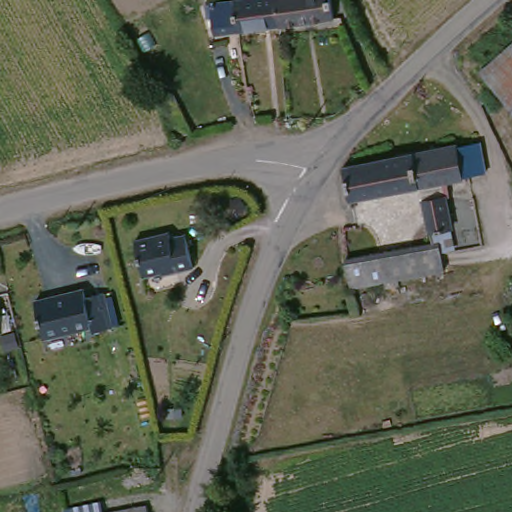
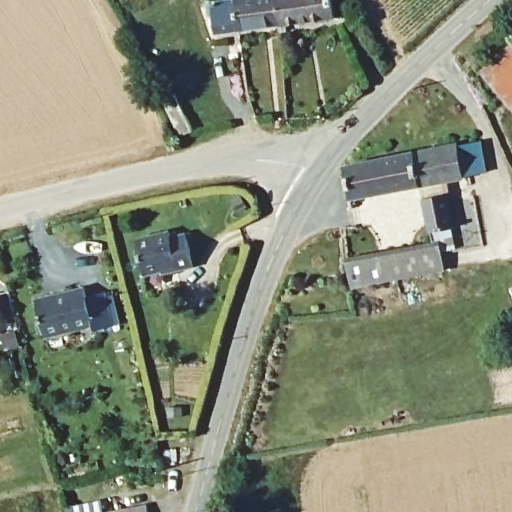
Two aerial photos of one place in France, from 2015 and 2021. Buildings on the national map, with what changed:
unchanged [(236,30),(215,32),(211,7),(212,0),(217,0),(278,0),(282,25),(236,30)]
unchanged [(282,25),(278,0),(332,0),(335,19),(282,25)]
unchanged [(487,86),(512,62),(512,114),(487,86)]
unchanged [(345,172),(456,149),(473,147),(476,170),(461,172),(461,180),(443,185),(450,231),(431,235),(420,189),(351,205),(345,172)]
unchanged [(183,240),(193,278),(173,282),(171,277),(139,284),(129,247),(160,240),(162,245),(183,240)]
unchanged [(353,290),(348,262),(443,249),(448,275),(353,290)]
unchanged [(30,305),(78,290),(80,298),(97,293),(107,327),(89,332),(88,327),(40,341),(30,305)]
unchanged [(98,512),(81,512),(98,510),(98,512)]
unchanged [(146,512),(142,512),(146,511),(146,512)]

